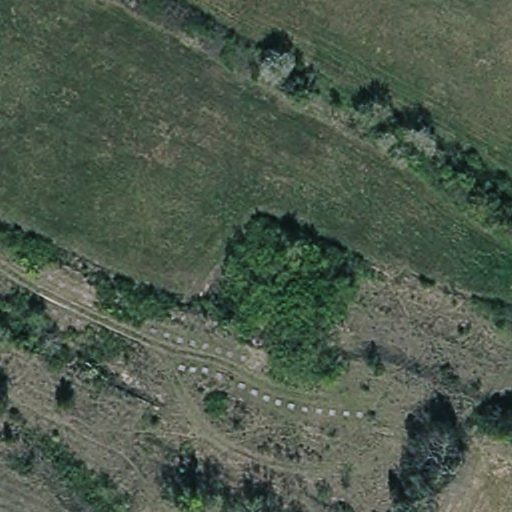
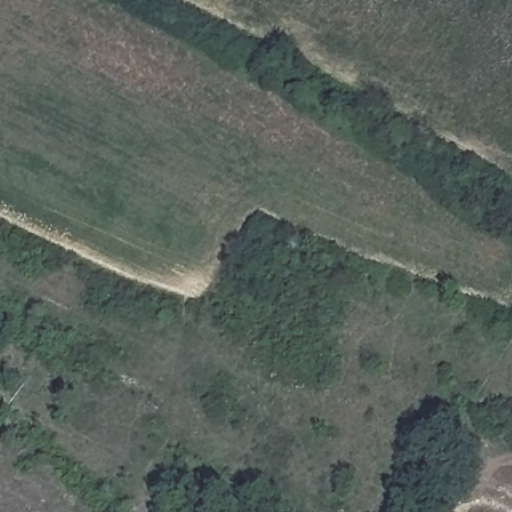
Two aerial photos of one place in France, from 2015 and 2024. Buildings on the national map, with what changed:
[]

